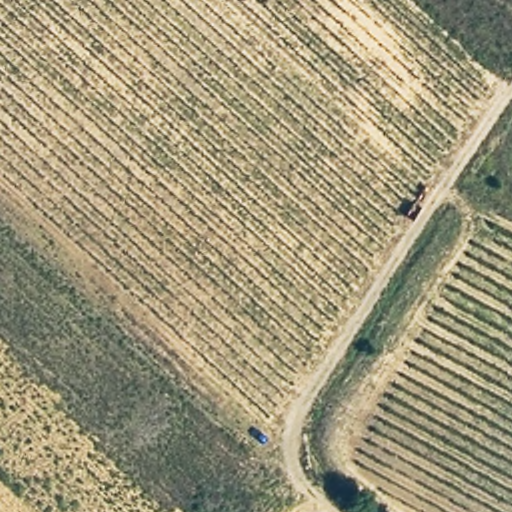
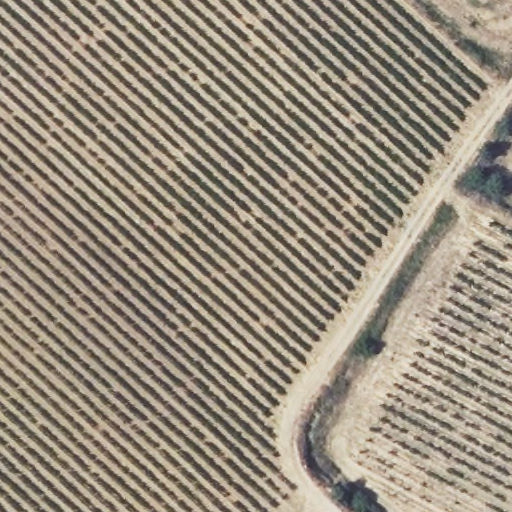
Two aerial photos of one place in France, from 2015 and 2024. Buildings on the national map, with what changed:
unchanged [(471,171),(478,156),(492,164),(483,177),(471,171)]

